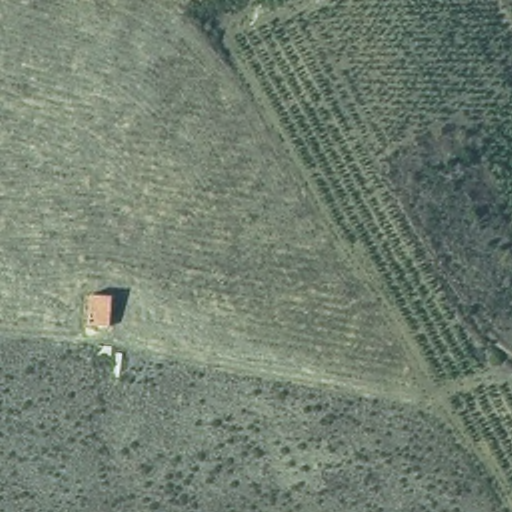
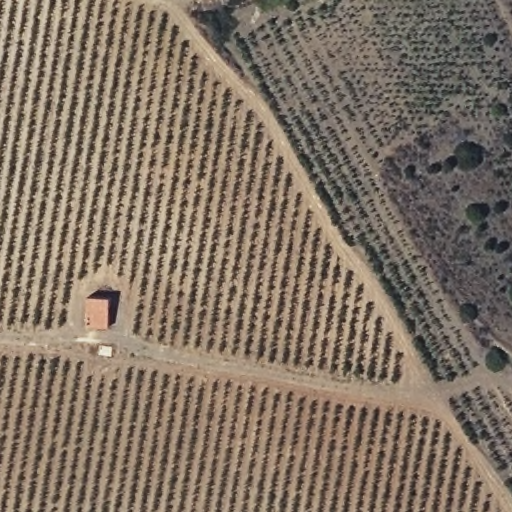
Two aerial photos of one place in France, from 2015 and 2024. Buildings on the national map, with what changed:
unchanged [(92,288),(114,287),(115,317),(92,317),(92,288)]

